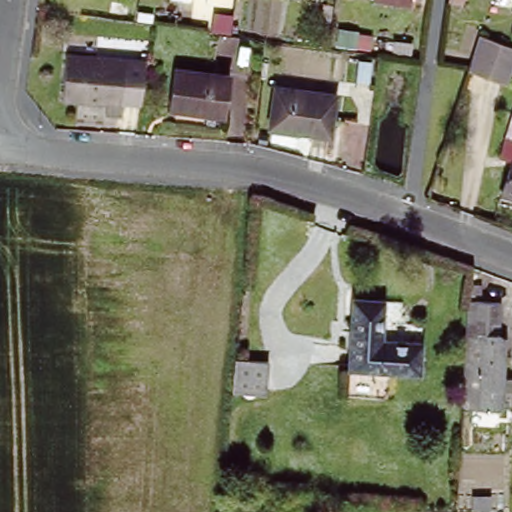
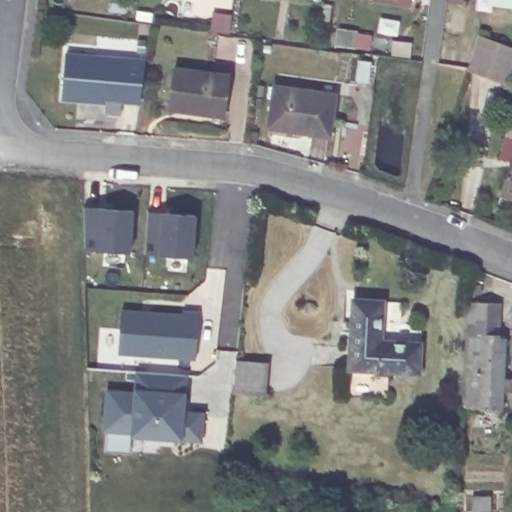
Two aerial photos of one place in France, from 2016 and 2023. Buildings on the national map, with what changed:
unchanged [(371,0),(409,0),(408,7),(370,2),(371,0)]
unchanged [(512,0),(512,1),(505,0),(512,0)]
unchanged [(479,37),(512,48),(512,71),(507,86),(467,73),(468,69),(479,37)]
unchanged [(121,103),(118,115),(102,113),(104,102),(78,101),(77,104),(59,101),(65,57),(144,65),(138,106),(121,103)]
unchanged [(226,78),(222,117),(166,109),(172,69),(226,78)]
unchanged [(333,100),(327,139),(267,131),(274,90),(333,100)]
unchanged [(492,205),(507,162),(495,157),(497,151),(502,138),(512,142),(512,210),(511,212),(492,205)]
new [(87,250),(87,207),(135,209),(132,252),(87,250)]
new [(148,256),(151,211),(197,214),(194,257),(148,256)]
unchanged [(465,289),(478,290),(477,302),(465,302),(465,294),(465,289)]
unchanged [(378,305),(376,344),(417,348),(415,377),(345,372),(348,303),(378,305)]
unchanged [(460,416),(465,308),(497,309),(497,347),(501,347),(498,417),(487,417),(460,416)]
new [(118,353),(120,309),(183,312),(185,310),(200,311),(197,360),(118,353)]
unchanged [(266,364),(263,397),(233,395),(237,361),(266,364)]
new [(184,441),(135,437),(130,452),(107,452),(108,432),(102,432),(105,389),(133,391),(133,387),(137,388),(137,371),(188,374),(187,391),(187,410),(206,411),(203,442),(184,441)]

